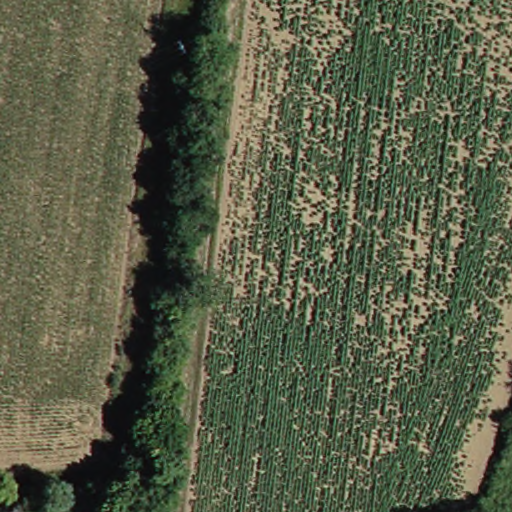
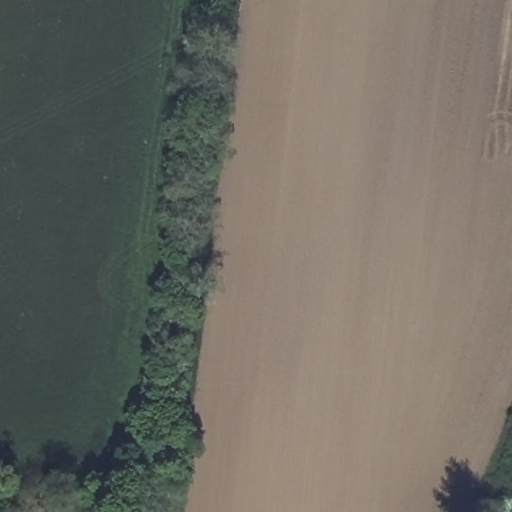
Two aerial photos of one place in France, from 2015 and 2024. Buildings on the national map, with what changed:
[]

